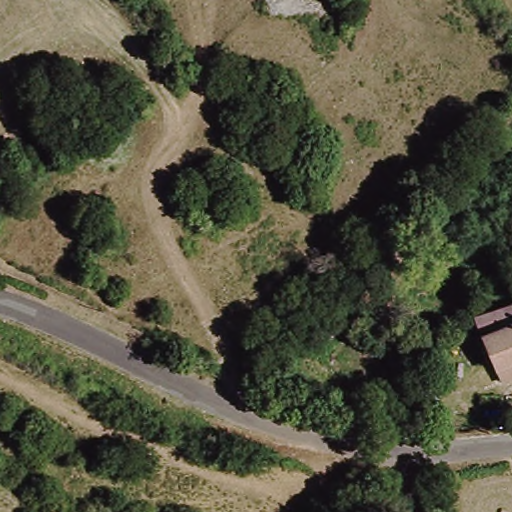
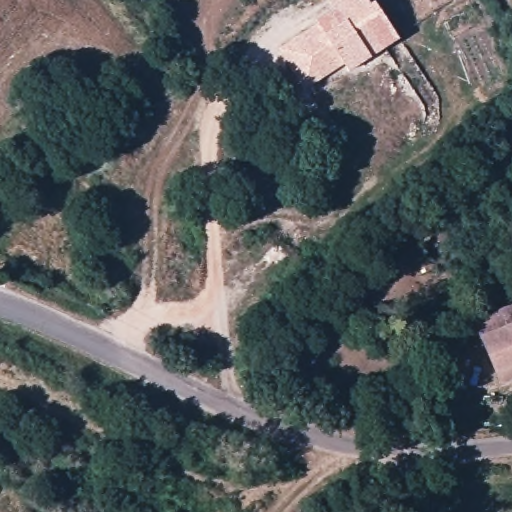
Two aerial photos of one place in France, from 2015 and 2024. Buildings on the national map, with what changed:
new [(315,19),(334,8),(328,0),(368,0),(370,3),(374,0),(399,38),(348,71),(343,64),(306,89),(279,49),(317,23),(315,19)]
unchanged [(492,369),(477,337),(512,321),(512,375),(497,381),(492,369)]

